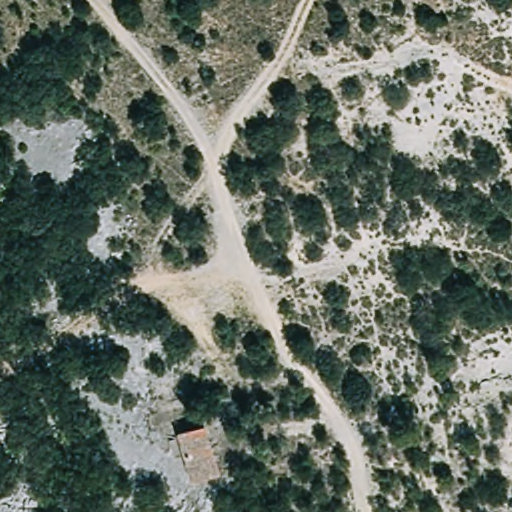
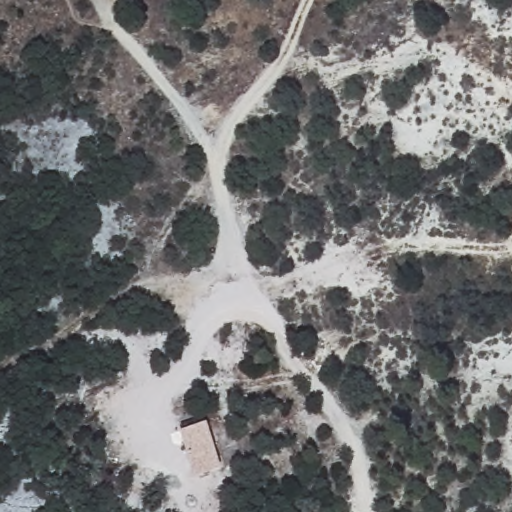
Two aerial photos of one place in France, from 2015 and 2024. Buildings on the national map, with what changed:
unchanged [(209,423),(223,472),(190,480),(177,432),(209,423)]

